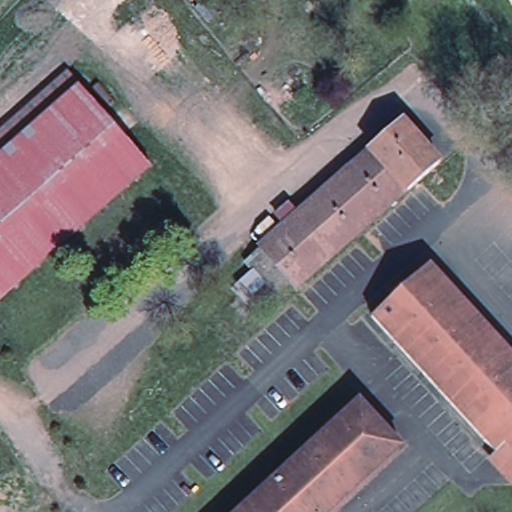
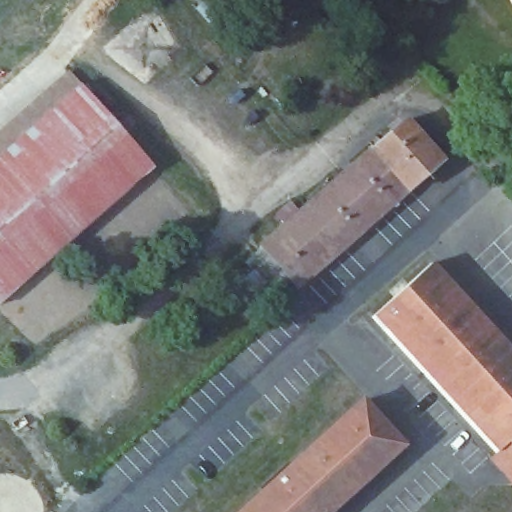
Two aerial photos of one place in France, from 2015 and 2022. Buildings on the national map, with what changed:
unchanged [(155,165),(0,301),(0,158),(84,84),(155,165)]
unchanged [(300,287),(264,244),(375,147),(407,119),(445,162),(300,287)]
unchanged [(375,317),(433,265),(512,352),(512,470),(496,452),(375,317)]
unchanged [(257,308),(242,290),(265,272),(279,290),(257,308)]
unchanged [(330,512),(242,512),(362,402),(402,446),(330,512)]

